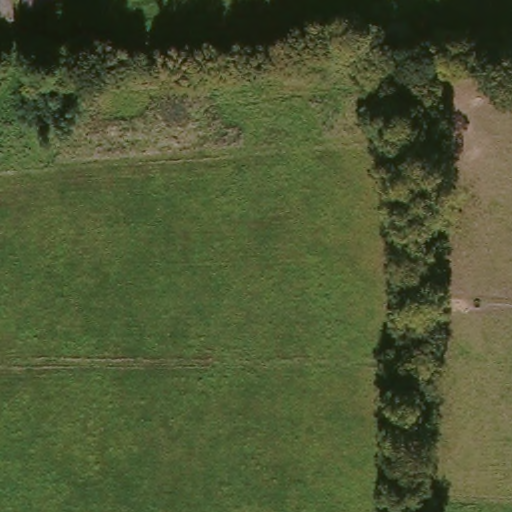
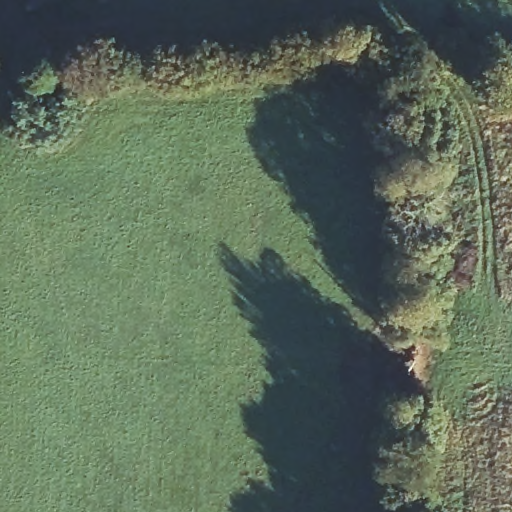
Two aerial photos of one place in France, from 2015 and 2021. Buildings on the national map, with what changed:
unchanged [(24,16),(21,0),(50,0),(50,1),(54,24),(47,25),(27,30),(24,16)]

